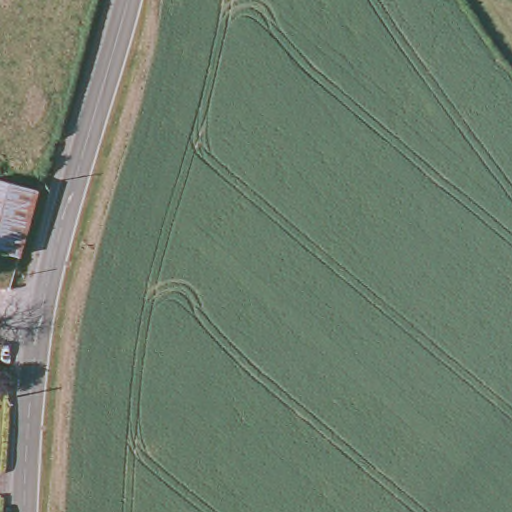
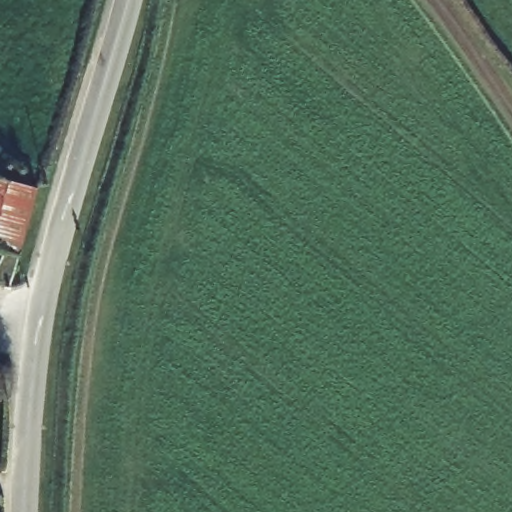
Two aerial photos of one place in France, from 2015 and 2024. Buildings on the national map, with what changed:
unchanged [(0,256),(0,185),(30,195),(3,257),(0,256)]

